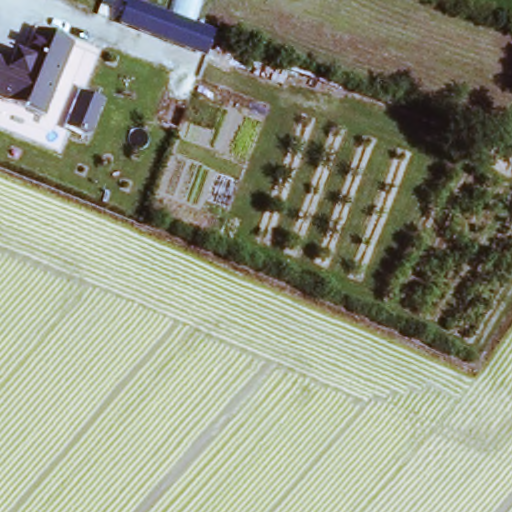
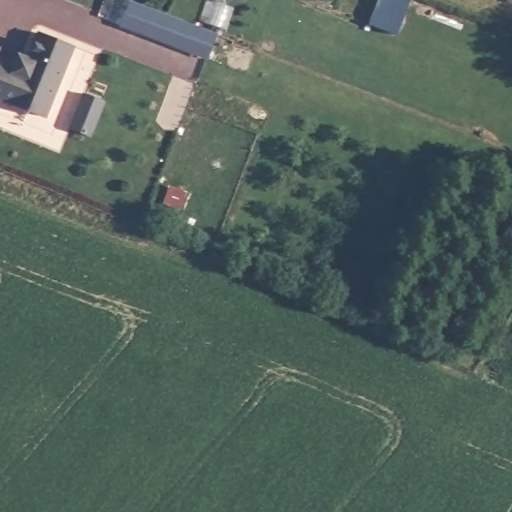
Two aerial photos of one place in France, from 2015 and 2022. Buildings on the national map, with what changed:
unchanged [(145,0),(222,27),(210,56),(123,24),(132,0),(145,0)]
new [(368,25),(378,0),(412,0),(397,36),(368,25)]
unchanged [(0,87),(0,50),(18,58),(20,55),(28,59),(44,26),(78,42),(48,109),(0,87)]

